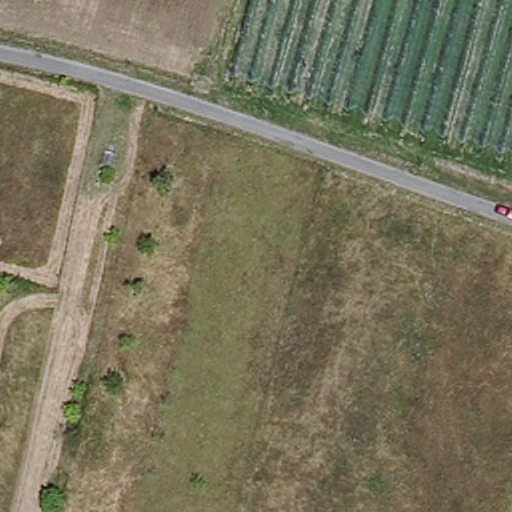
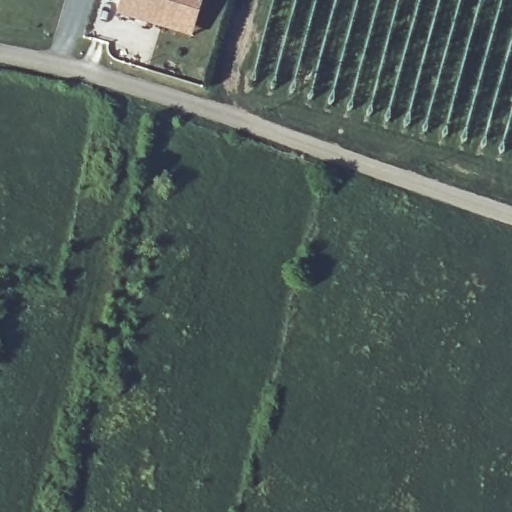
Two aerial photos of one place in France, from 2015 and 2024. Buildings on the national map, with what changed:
new [(115,15),(120,0),(201,0),(190,36),(115,15)]

